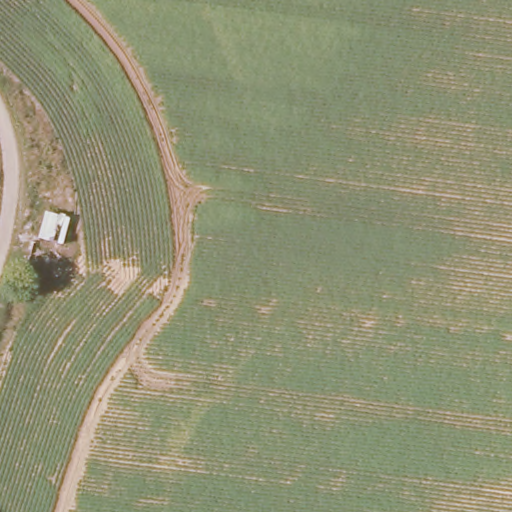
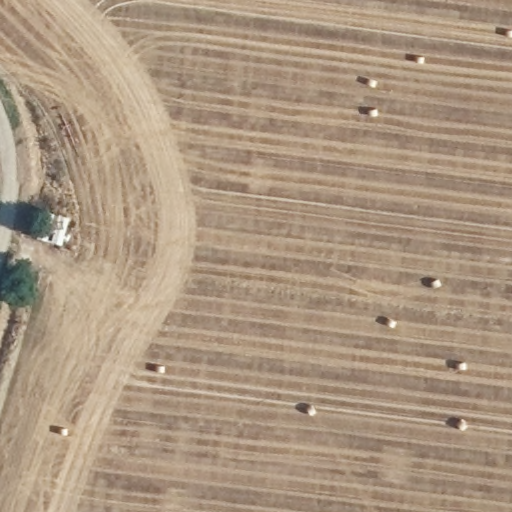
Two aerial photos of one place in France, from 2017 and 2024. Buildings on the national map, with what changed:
unchanged [(39,227),(41,210),(64,219),(59,244),(36,239),(39,227)]

